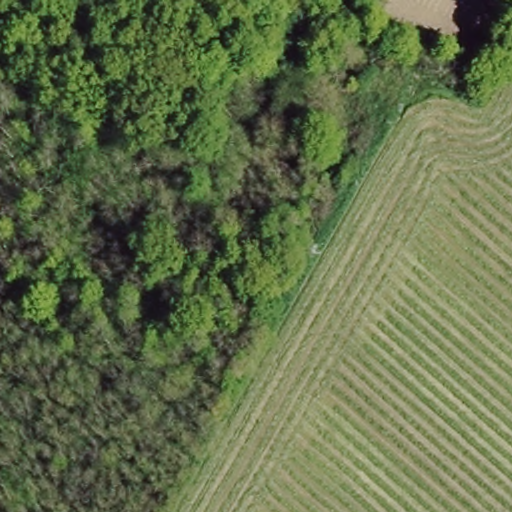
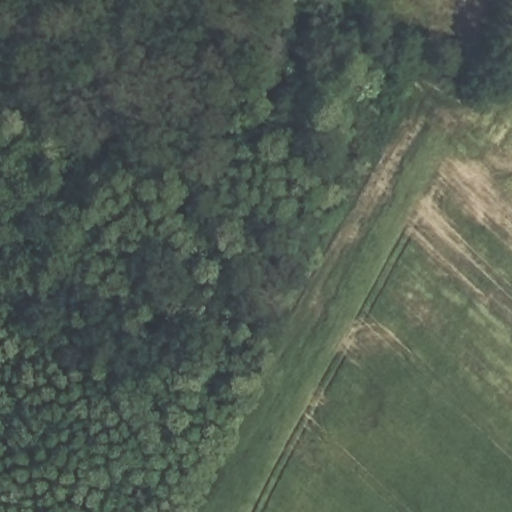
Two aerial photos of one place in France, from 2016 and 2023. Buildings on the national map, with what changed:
[]

